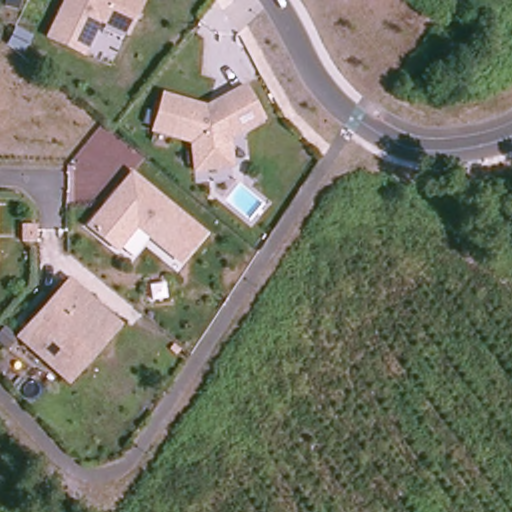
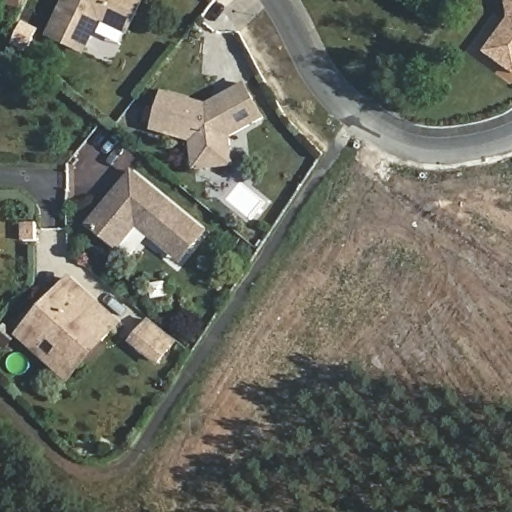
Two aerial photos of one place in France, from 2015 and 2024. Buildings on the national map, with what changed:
unchanged [(103,22),(85,55),(46,37),(64,0),(144,0),(129,34),(103,22)]
new [(505,0),(512,0),(512,74),(483,53),(508,20),(505,0)]
unchanged [(262,117),(227,136),(231,163),(191,167),(189,142),(148,131),(158,90),(204,103),(242,81),(262,117)]
unchanged [(181,265),(136,228),(118,250),(86,225),(131,169),(207,231),(181,265)]
unchanged [(66,382),(14,335),(67,276),(121,321),(66,382)]
new [(149,324),(174,345),(157,365),(132,345),(149,324)]

